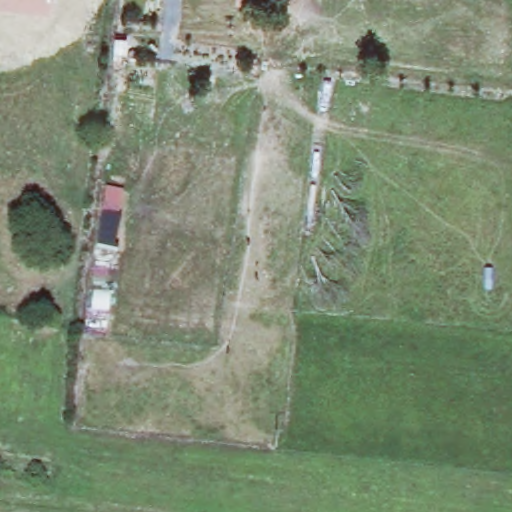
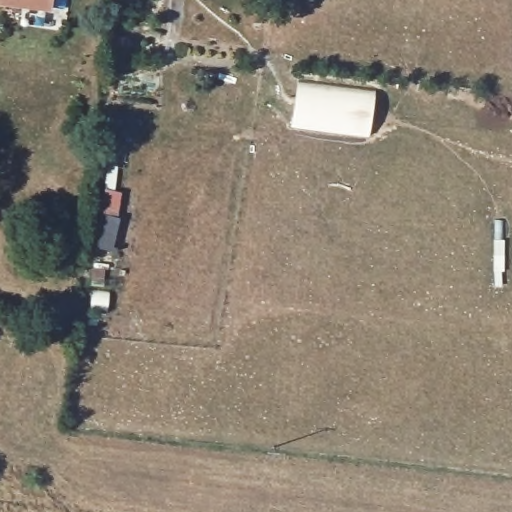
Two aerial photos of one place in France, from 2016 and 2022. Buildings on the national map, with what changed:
unchanged [(51,14),(0,5),(0,0),(53,0),(51,14)]
new [(302,84),(373,93),(368,138),(297,129),(302,84)]
new [(105,192),(121,194),(114,250),(99,249),(105,192)]

